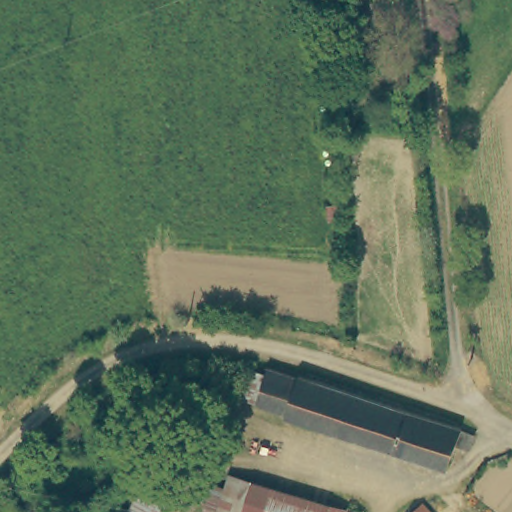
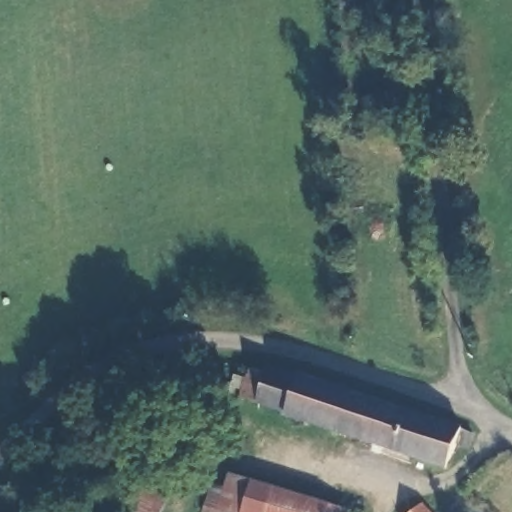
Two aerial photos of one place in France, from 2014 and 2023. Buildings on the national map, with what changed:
unchanged [(337,14),(335,0),(355,0),(356,12),(337,14)]
unchanged [(274,371),(265,406),(226,394),(231,374),(239,376),(242,364),(274,371)]
unchanged [(275,368),(276,368),(303,376),(291,413),(265,406),(274,371),(275,368)]
unchanged [(346,388),(475,432),(469,448),(462,446),(452,470),(290,418),(291,413),(303,376),(346,388)]
unchanged [(160,462),(164,452),(191,463),(183,481),(157,470),(160,462)]
unchanged [(219,512),(205,512),(202,511),(203,507),(217,467),(355,511),(354,512),(221,512),(219,512)]
unchanged [(166,494),(157,512),(131,512),(146,484),(166,494)]
unchanged [(431,512),(419,512),(425,506),(431,512)]

